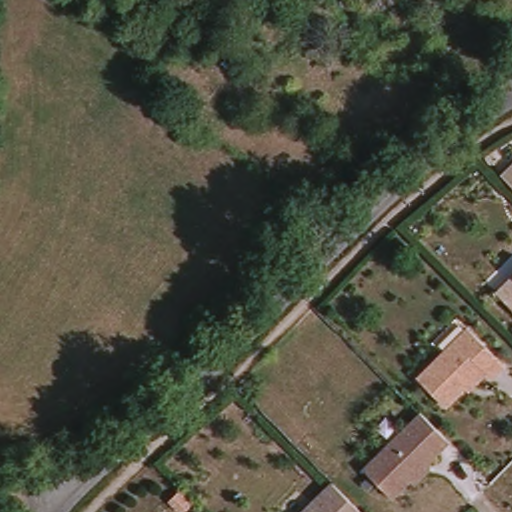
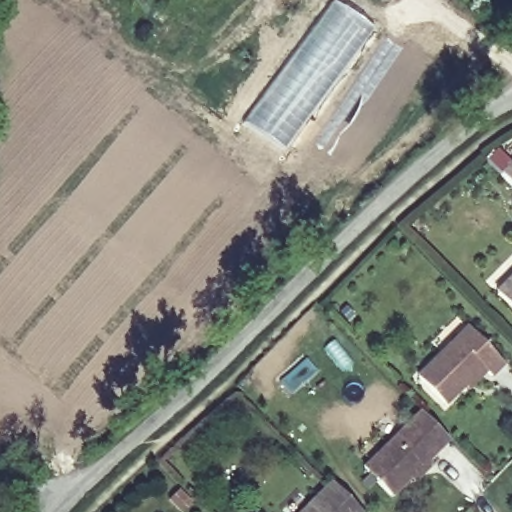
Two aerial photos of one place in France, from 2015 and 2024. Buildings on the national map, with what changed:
new [(331,2),(372,30),(285,149),(243,120),(331,2)]
new [(511,163),(512,161),(512,186),(487,161),(498,149),(511,163)]
unchanged [(512,276),(512,310),(495,293),(512,276)]
unchanged [(444,406),(416,379),(465,329),(502,366),(490,378),(485,372),(466,391),(462,387),(444,406)]
unchanged [(408,479),(390,498),(362,469),(419,413),(447,442),(427,462),(427,468),(412,484),(408,479)]
unchanged [(330,484),(359,512),(302,512),(330,484)]

